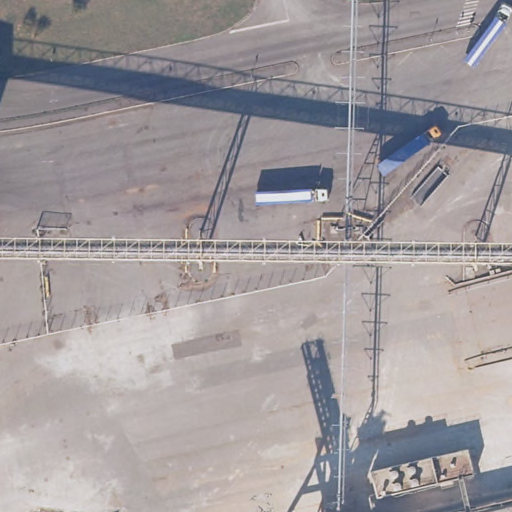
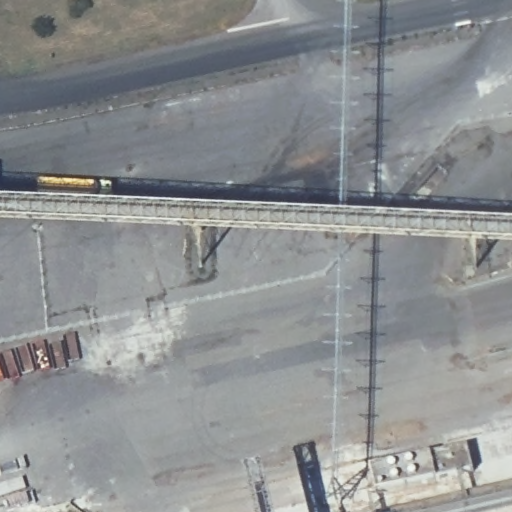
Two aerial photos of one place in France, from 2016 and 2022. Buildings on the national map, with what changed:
unchanged [(475,461),(477,472),(444,479),(380,493),(377,483),(374,467),(472,446),(475,461)]

